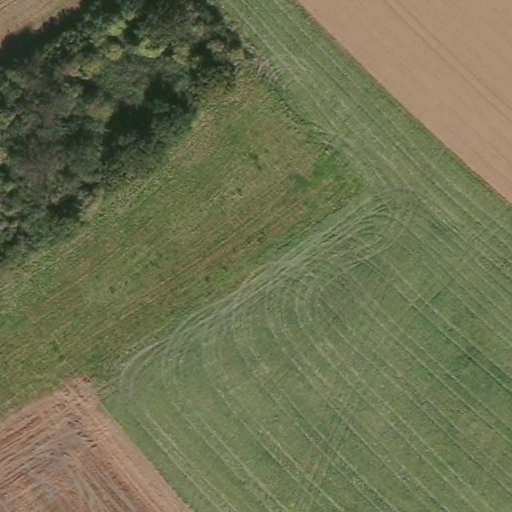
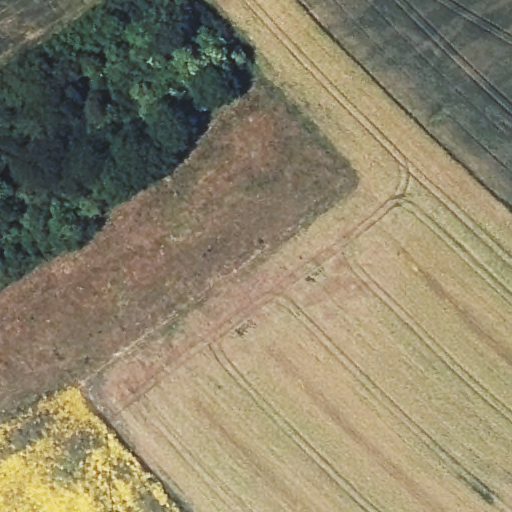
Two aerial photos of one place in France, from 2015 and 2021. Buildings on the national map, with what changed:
[]

